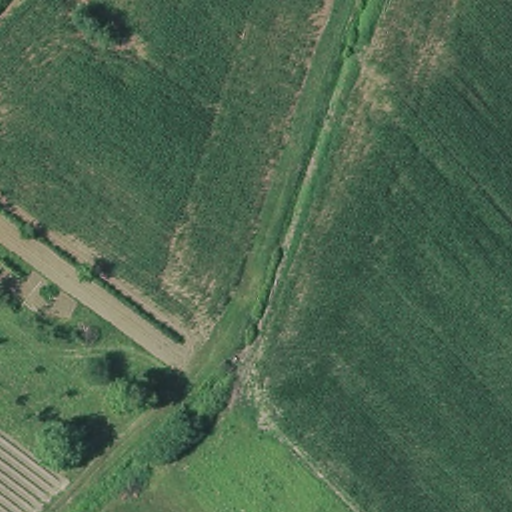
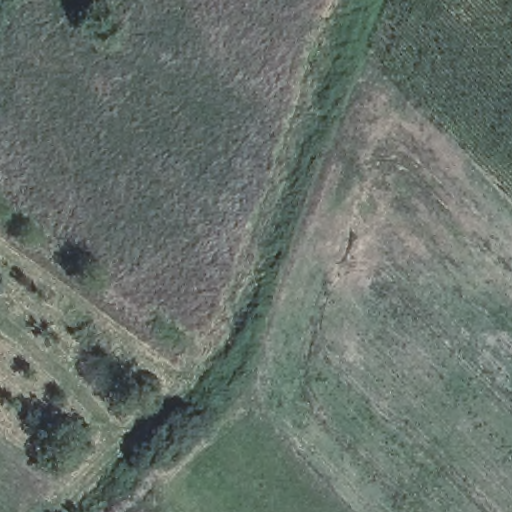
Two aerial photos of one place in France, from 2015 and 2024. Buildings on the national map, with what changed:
[]

